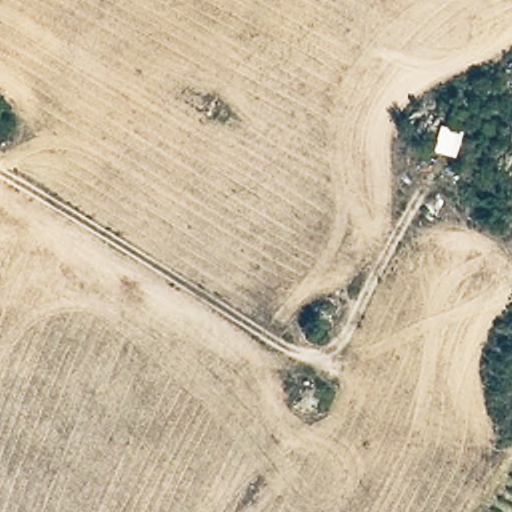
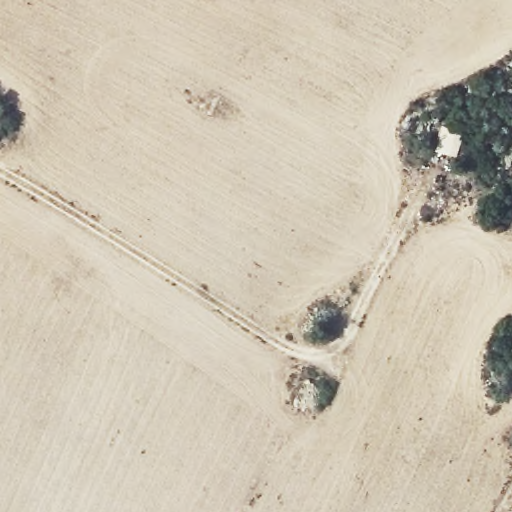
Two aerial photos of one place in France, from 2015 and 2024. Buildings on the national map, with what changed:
unchanged [(465,135),(456,159),(437,151),(447,127),(465,135)]

